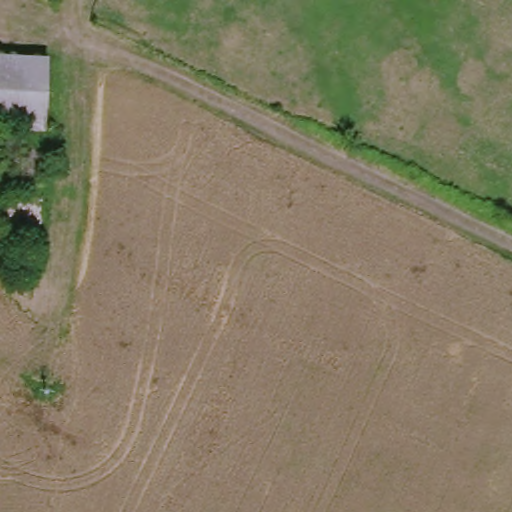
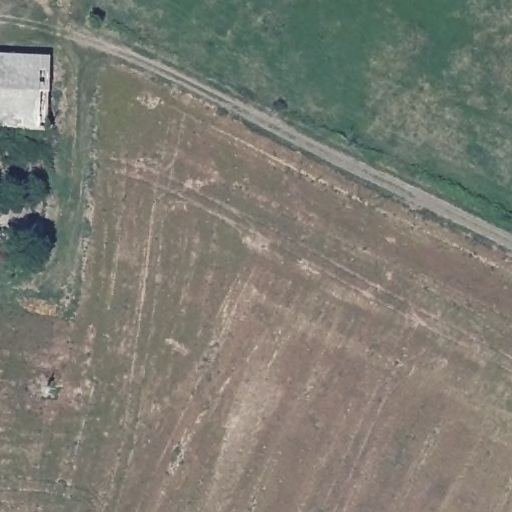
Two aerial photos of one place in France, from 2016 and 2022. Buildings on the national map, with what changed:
unchanged [(46,57),(43,127),(0,125),(0,55),(46,57)]

